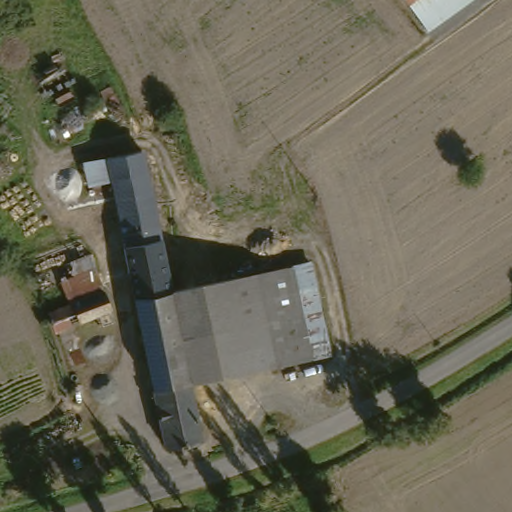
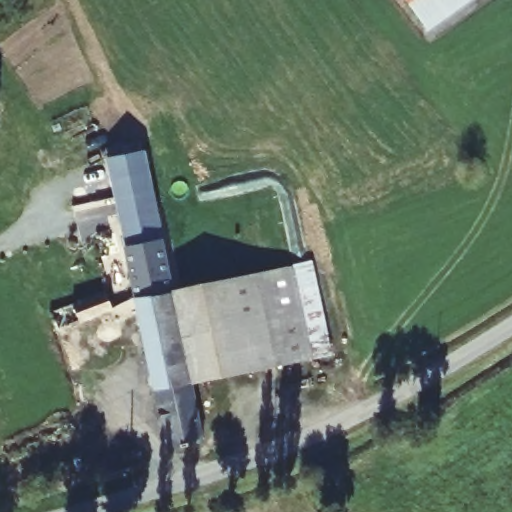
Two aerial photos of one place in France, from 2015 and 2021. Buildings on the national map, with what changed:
unchanged [(429,27),(409,0),(467,0),(429,27)]
unchanged [(118,229),(102,155),(139,147),(169,288),(134,299),(118,229)]
unchanged [(309,259),(329,354),(189,383),(169,288),(309,259)]
unchanged [(55,310),(78,301),(109,288),(116,307),(63,328),(55,310)]
unchanged [(166,451),(134,299),(169,288),(189,383),(200,443),(166,451)]

